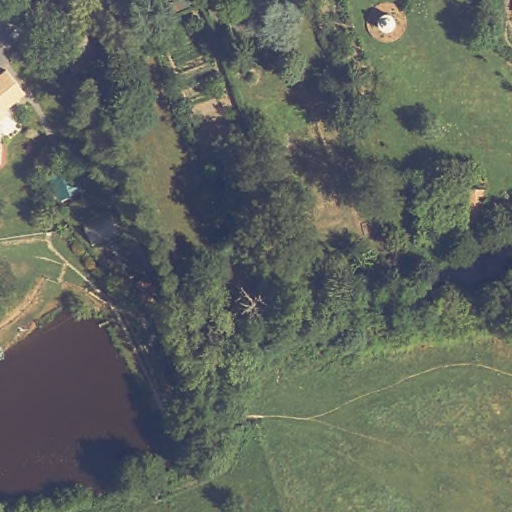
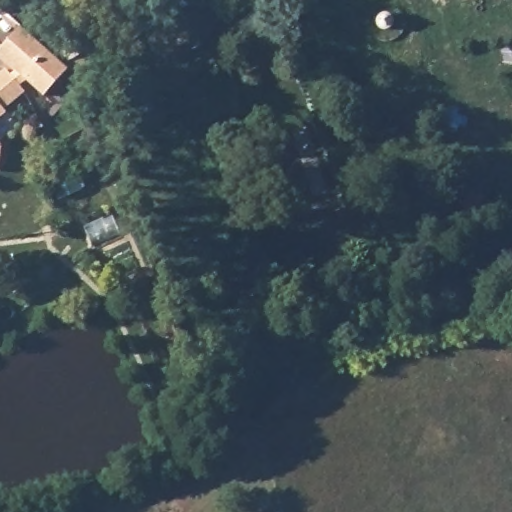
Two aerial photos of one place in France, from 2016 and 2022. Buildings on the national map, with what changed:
new [(70,69),(46,96),(0,56),(0,50),(21,26),(70,69)]
unchanged [(94,74),(77,46),(97,32),(115,60),(94,74)]
unchanged [(27,93),(0,117),(0,73),(5,69),(27,93)]

